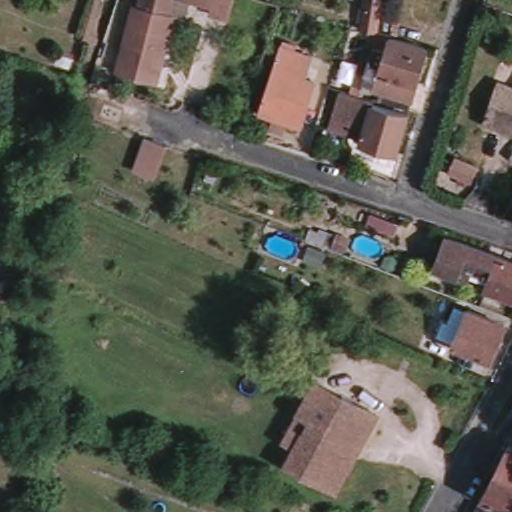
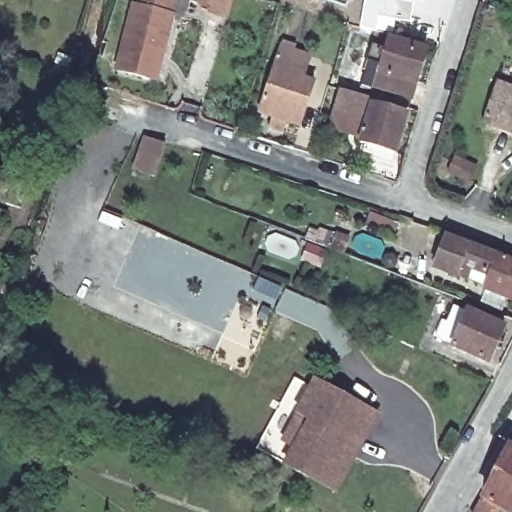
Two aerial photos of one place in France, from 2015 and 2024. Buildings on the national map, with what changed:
unchanged [(118,76),(138,10),(141,10),(145,0),(173,0),(177,1),(172,19),(176,21),(166,58),(156,88),(151,86),(118,76)]
unchanged [(215,15),(215,12),(177,1),(177,0),(236,0),(231,20),(215,15)]
unchanged [(355,33),(359,0),(382,0),(377,38),(355,33)]
unchanged [(418,84),(378,71),(380,65),(368,61),(372,46),(385,50),(389,36),(429,48),(418,84)]
unchanged [(311,61),(305,85),(315,89),(302,131),(262,119),(281,53),(311,61)]
unchanged [(74,60),(70,72),(56,68),(60,55),(74,60)]
unchanged [(330,84),(338,59),(359,65),(352,90),(330,84)]
unchanged [(335,110),(339,94),(328,90),(330,84),(409,111),(396,151),(361,139),(363,133),(331,123),(335,110)]
unchanged [(502,131),(500,136),(486,131),(501,90),(512,93),(512,135),(502,131)]
unchanged [(164,147),(151,178),(131,171),(143,140),(164,147)]
unchanged [(470,184),(452,176),(459,159),(478,168),(470,184)]
unchanged [(212,193),(199,188),(208,164),(221,170),(212,193)]
unchanged [(354,242),(358,231),(367,233),(371,218),(397,224),(379,267),(306,242),(308,226),(354,242)]
unchanged [(512,263),(512,301),(487,293),(491,277),(462,266),(457,277),(436,270),(448,240),(512,263)]
unchanged [(329,256),(324,273),(301,263),(306,247),(329,256)]
unchanged [(499,370),(463,354),(464,351),(447,344),(453,328),(458,329),(465,314),(478,319),(478,318),(512,332),(512,340),(499,370)]
unchanged [(287,445),(301,419),(316,391),(343,406),(347,399),(377,415),(381,417),(359,460),(340,495),(290,468),(299,451),(287,445)]
unchanged [(505,509),(498,505),(493,512),(469,512),(490,472),(506,442),(512,445),(512,512),(504,512),(505,509)]

